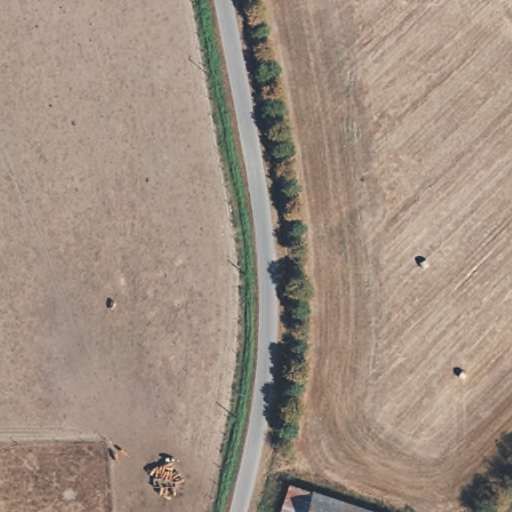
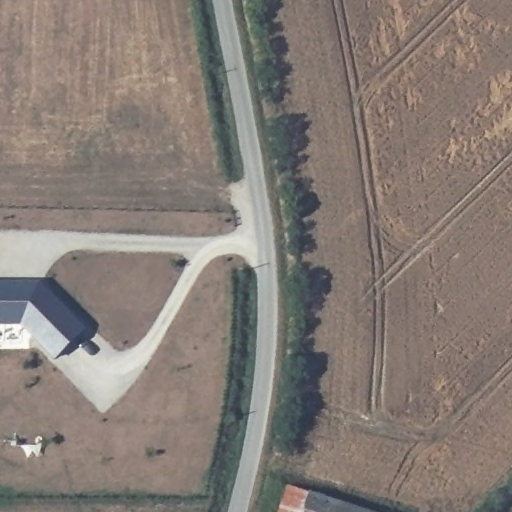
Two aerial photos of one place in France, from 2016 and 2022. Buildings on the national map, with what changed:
new [(87,328),(55,358),(22,324),(0,324),(0,281),(41,282),(87,328)]
unchanged [(377,512),(274,512),(283,482),(377,512)]

